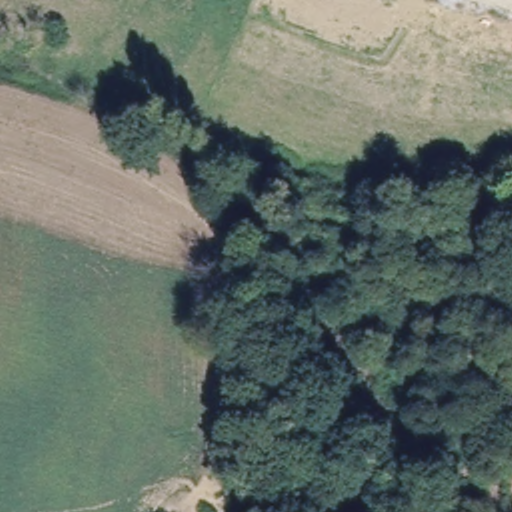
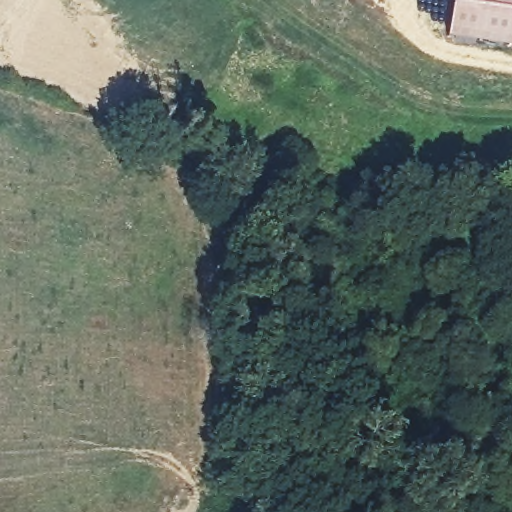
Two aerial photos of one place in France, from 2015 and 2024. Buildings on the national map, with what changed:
new [(447,39),(453,0),(512,0),(512,49),(447,39)]

